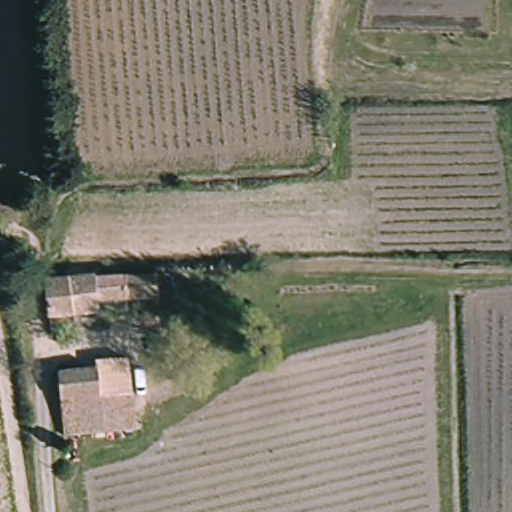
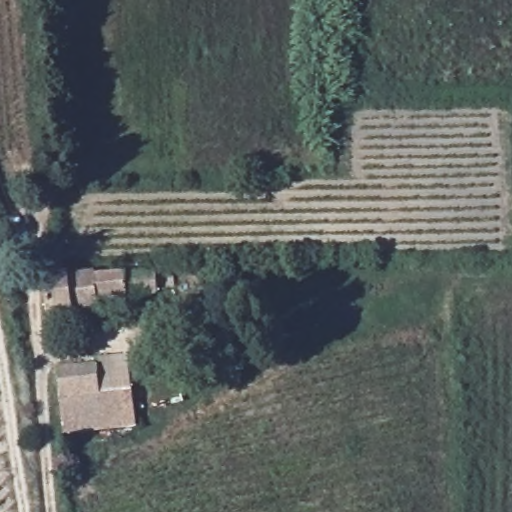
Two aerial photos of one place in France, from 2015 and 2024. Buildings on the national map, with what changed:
unchanged [(94,280),(168,275),(170,287),(155,289),(156,297),(98,302),(99,313),(45,318),(41,281),(64,278),(94,277),(94,280)]
unchanged [(205,330),(180,331),(179,318),(204,317),(205,330)]
unchanged [(100,367),(99,360),(131,357),(132,365),(135,388),(107,392),(63,398),(60,371),(100,367)]
unchanged [(63,398),(107,392),(108,431),(65,435),(63,398)]

